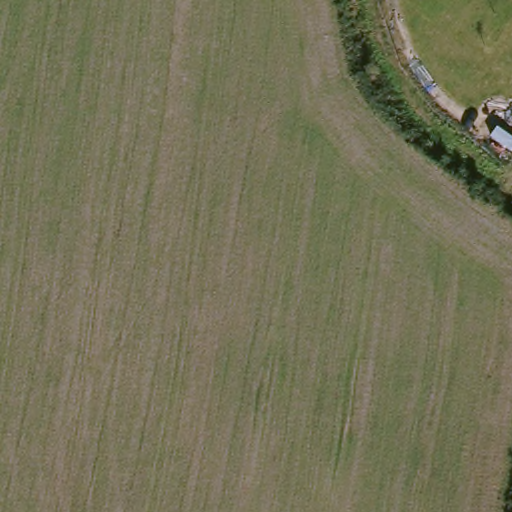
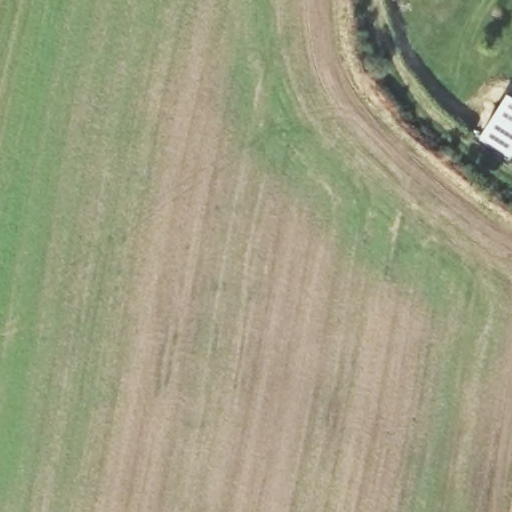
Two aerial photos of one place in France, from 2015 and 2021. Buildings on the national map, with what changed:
new [(512,99),(512,157),(511,159),(478,137),(504,94),(512,99)]

